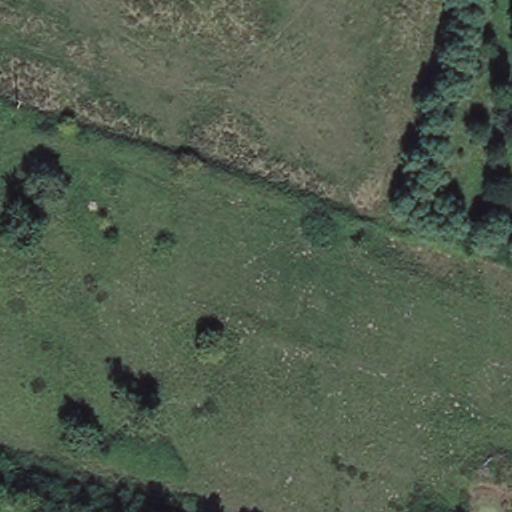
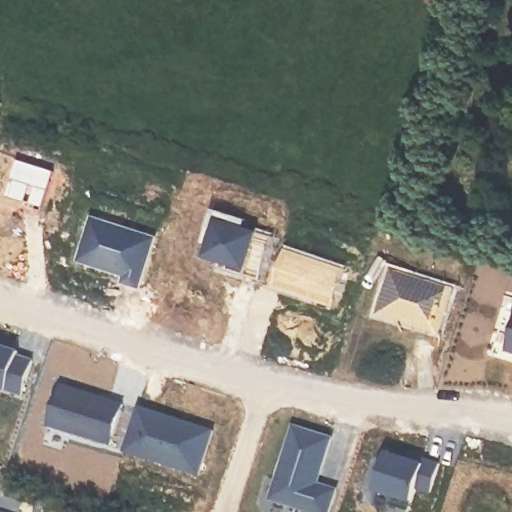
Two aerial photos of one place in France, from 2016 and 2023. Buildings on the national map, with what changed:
new [(215,218),(270,236),(256,278),(223,267),(225,262),(204,255),(215,218)]
new [(389,270),(451,289),(436,333),(375,315),(389,270)]
new [(19,350),(17,354),(32,359),(21,393),(0,386),(0,344),(19,350)]
new [(60,384),(122,405),(109,444),(47,423),(60,384)]
new [(136,407),(213,431),(197,475),(122,450),(136,407)]
new [(293,426),(331,438),(316,483),(335,490),(328,512),(314,512),(270,497),(293,426)]
new [(407,459),(408,455),(425,460),(440,465),(431,493),(417,489),(410,511),(389,505),(392,496),(374,489),(386,452),(407,459)]

